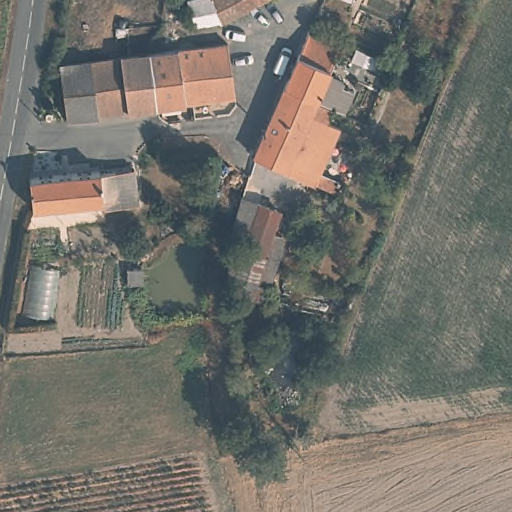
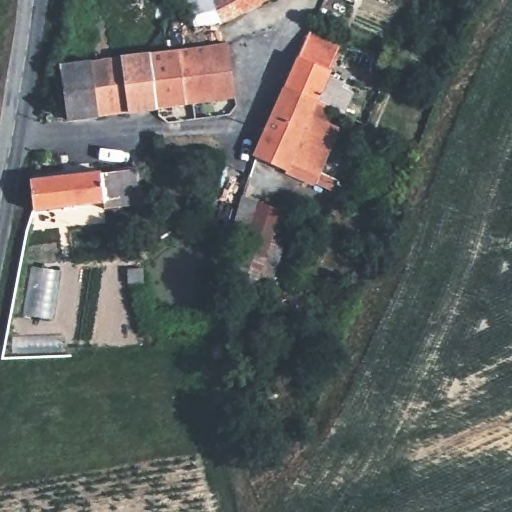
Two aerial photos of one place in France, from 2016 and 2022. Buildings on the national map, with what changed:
unchanged [(208,0),(263,0),(220,23),(208,0)]
unchanged [(287,168),(257,154),(287,86),(313,27),(346,41),(329,77),(344,86),(334,110),(321,139),(313,135),(308,146),(297,175),(285,170),(287,168)]
unchanged [(231,48),(238,100),(160,110),(153,60),(231,48)]
unchanged [(61,72),(153,60),(160,110),(68,122),(61,72)]
unchanged [(94,170),(102,172),(111,171),(112,170),(116,196),(101,199),(99,202),(31,211),(29,180),(94,170)]
unchanged [(283,210),(276,232),(289,236),(265,303),(231,292),(228,254),(245,196),(283,210)]
unchanged [(140,267),(140,281),(125,283),(124,268),(140,267)]

